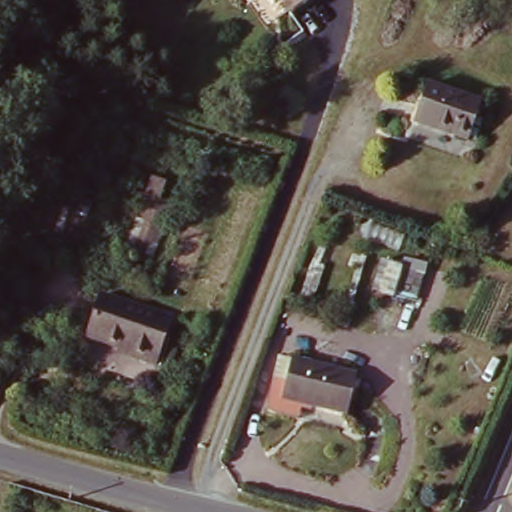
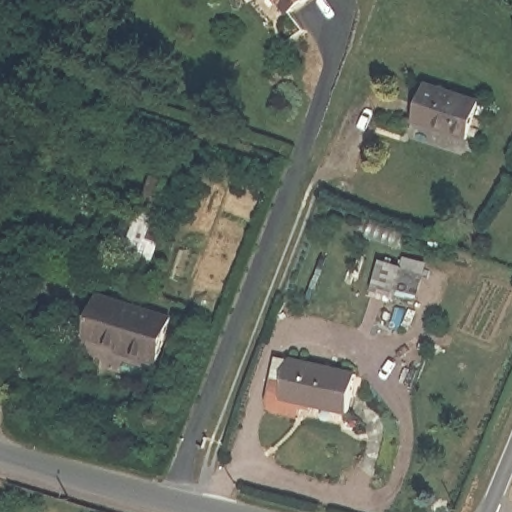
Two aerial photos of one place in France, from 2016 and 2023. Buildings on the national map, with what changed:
unchanged [(295,15),(284,0),(316,0),(295,15)]
unchanged [(432,87),(483,106),(470,141),(419,123),(432,87)]
unchanged [(171,315),(157,360),(138,355),(139,348),(94,335),(106,294),(171,315)]
unchanged [(351,413),(283,395),(294,357),(361,375),(357,394),(351,413)]

